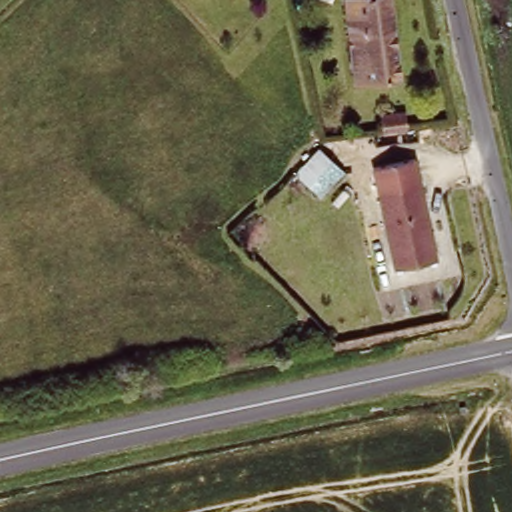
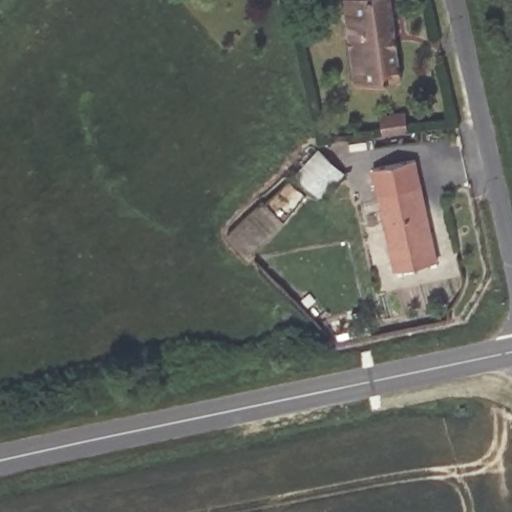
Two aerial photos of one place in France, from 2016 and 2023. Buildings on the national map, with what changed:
unchanged [(349,0),(396,0),(405,68),(359,75),(349,0)]
unchanged [(370,104),(402,100),(406,130),(374,135),(370,104)]
unchanged [(345,165),(321,191),(298,169),(320,145),(345,165)]
unchanged [(370,163),(412,154),(418,178),(376,188),(370,163)]
unchanged [(418,178),(435,255),(406,262),(393,265),(389,244),(376,188),(418,178)]

